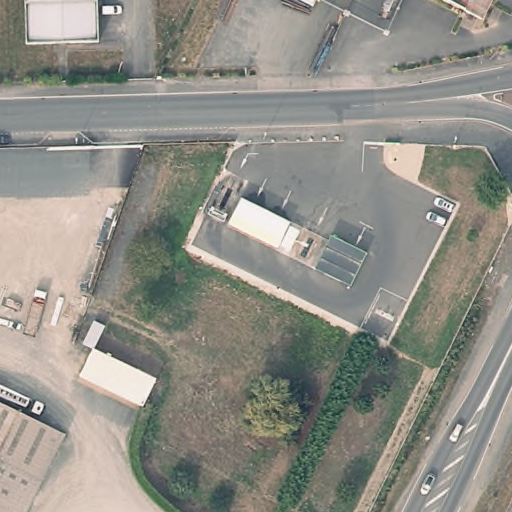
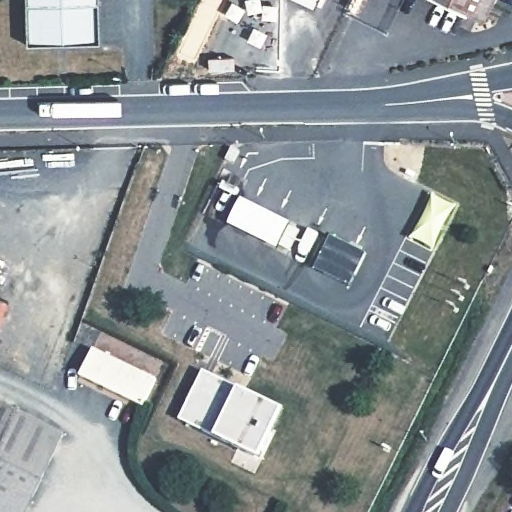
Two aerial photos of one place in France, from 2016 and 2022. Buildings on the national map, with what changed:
unchanged [(29,41),(28,0),(100,0),(101,41),(29,41)]
unchanged [(307,0),(318,0),(316,4),(307,0)]
unchanged [(467,0),(491,0),(487,9),(467,0)]
unchanged [(241,198),(292,223),(279,251),(227,226),(241,198)]
unchanged [(331,238),(366,254),(351,286),(316,269),(331,238)]
unchanged [(93,344),(157,374),(143,403),(80,372),(93,344)]
new [(285,411),(260,460),(213,438),(177,420),(201,369),(237,388),(285,411)]
unchanged [(23,512),(0,512),(0,406),(62,438),(23,512)]

